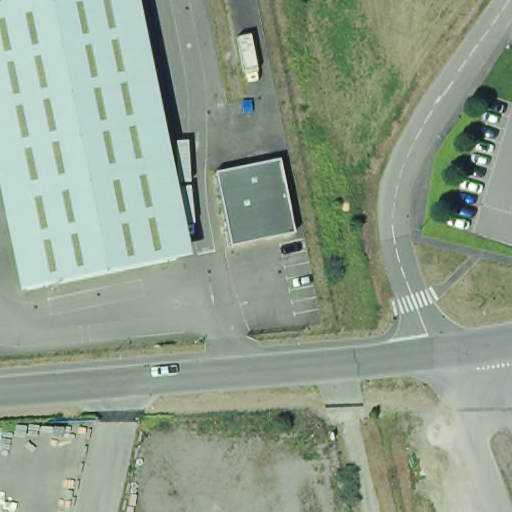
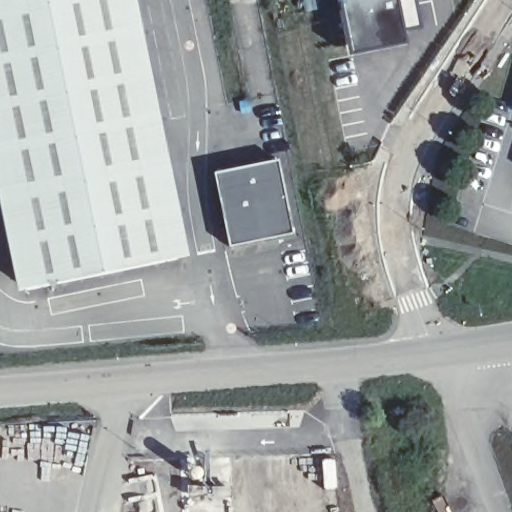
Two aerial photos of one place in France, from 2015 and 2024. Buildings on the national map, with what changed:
unchanged [(187,253),(13,291),(0,229),(0,0),(126,0),(187,253)]
new [(405,42),(348,57),(337,0),(398,0),(405,42)]
unchanged [(276,157),(292,233),(229,245),(214,170),(276,157)]

